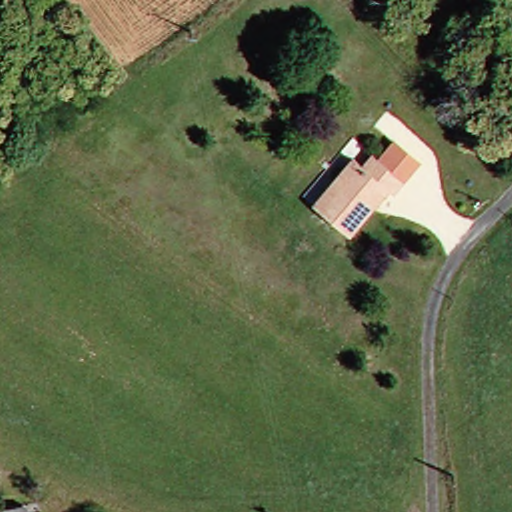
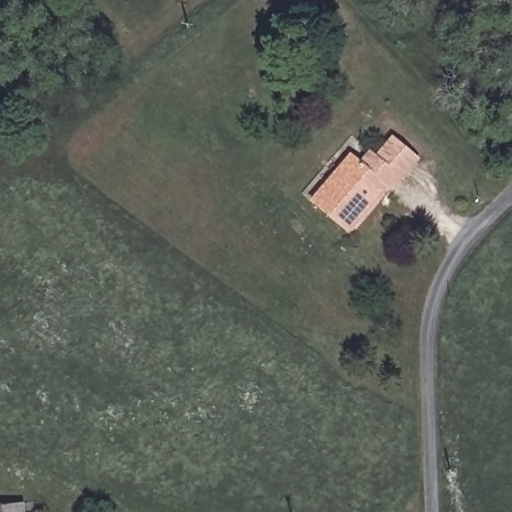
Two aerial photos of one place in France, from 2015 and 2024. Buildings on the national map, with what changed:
unchanged [(306,204),(343,162),(352,168),(365,156),(398,186),(386,197),(378,190),(339,234),(306,204)]
unchanged [(18,512),(0,512),(0,509),(17,506),(18,512)]

